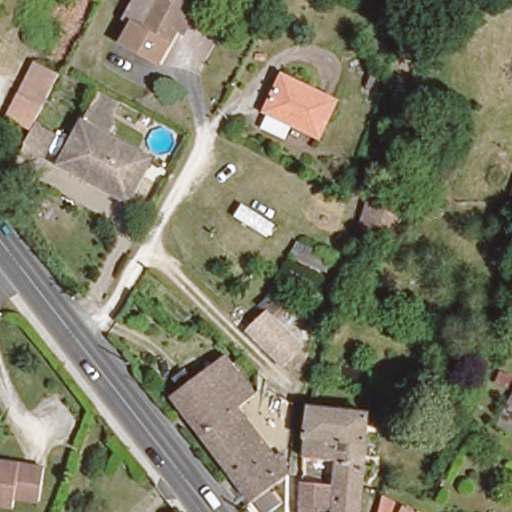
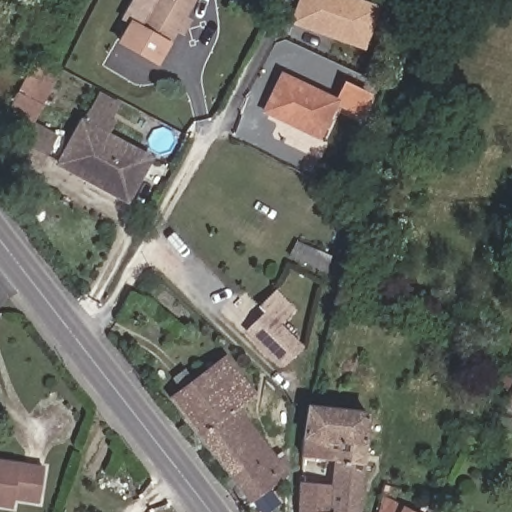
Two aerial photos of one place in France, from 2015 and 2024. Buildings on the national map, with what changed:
unchanged [(179,33),(159,68),(119,47),(130,29),(122,26),(130,8),(135,0),(199,0),(188,18),(196,23),(187,37),(179,33)]
new [(364,51),(289,24),(297,0),(360,0),(380,7),(364,51)]
unchanged [(58,71),(29,127),(6,116),(35,60),(58,71)]
unchanged [(322,129),(266,102),(281,71),(337,99),(322,129)]
unchanged [(100,76),(128,92),(106,129),(79,114),(100,76)]
unchanged [(106,129),(149,152),(126,194),(56,155),(79,114),(106,129)]
unchanged [(56,135),(46,152),(28,141),(36,124),(56,135)]
unchanged [(372,175),(406,191),(386,237),(358,224),(372,175)]
unchanged [(284,251),(294,238),(324,260),(318,278),(284,251)]
unchanged [(283,363),(252,328),(273,306),(270,303),(277,291),(294,308),(284,319),(304,340),(283,363)]
unchanged [(173,384),(193,369),(188,362),(199,354),(203,360),(219,349),(249,391),(252,395),(237,406),(222,417),(245,452),(229,465),(173,384)]
unchanged [(507,397),(512,388),(512,401),(507,397)]
unchanged [(365,412),(358,512),(329,512),(332,455),(300,451),(308,404),(365,412)]
unchanged [(245,452),(222,417),(237,406),(280,467),(248,491),(229,465),(245,452)]
unchanged [(300,451),(332,455),(329,512),(297,512),(297,499),(300,451)]
unchanged [(44,466),(41,495),(14,492),(13,499),(0,498),(0,457),(44,463),(44,466)]
unchanged [(387,494),(416,512),(377,512),(381,490),(387,494)]

